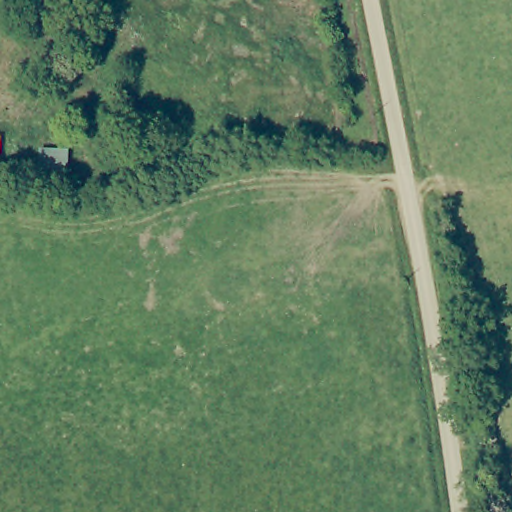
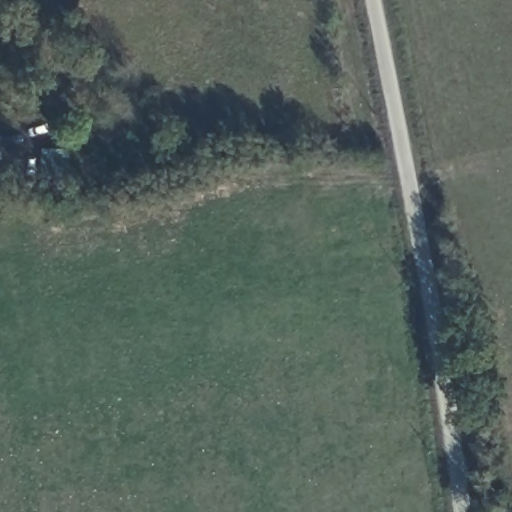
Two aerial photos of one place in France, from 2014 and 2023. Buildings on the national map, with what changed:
unchanged [(43,149),(72,148),(71,183),(43,181),(43,149)]

